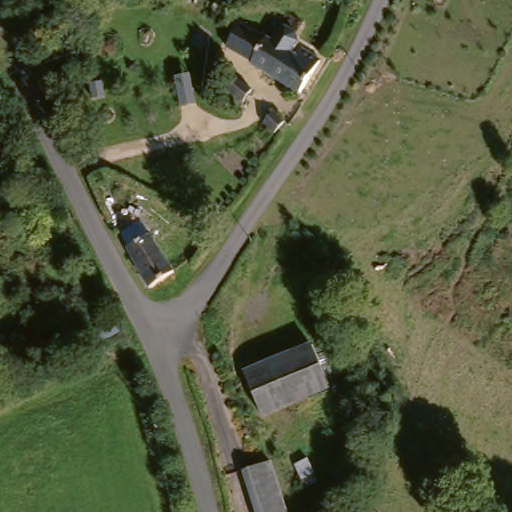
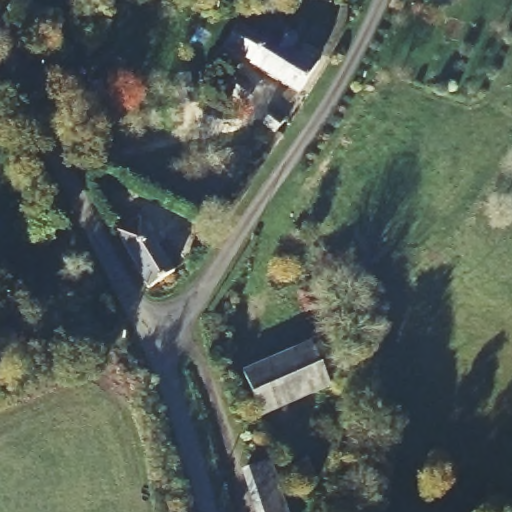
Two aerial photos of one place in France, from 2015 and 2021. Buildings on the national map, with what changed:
unchanged [(272,54),(279,42),(288,41),(298,48),(301,57),(293,68),(298,72),(306,59),(321,67),(297,106),(253,78),(269,52),(272,54)]
unchanged [(219,95),(233,88),(246,104),(238,112),(219,95)]
unchanged [(273,142),(263,133),(271,125),(281,133),(273,142)]
unchanged [(143,286),(127,245),(150,234),(174,271),(143,286)]
unchanged [(327,395),(267,425),(247,381),(311,351),(327,395)]
unchanged [(258,512),(244,478),(267,468),(284,512),(258,512)]

